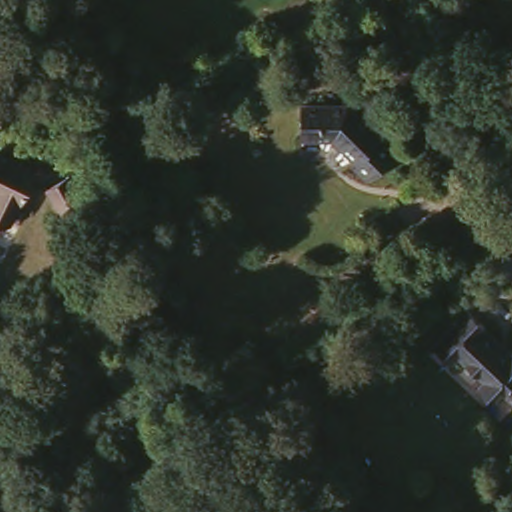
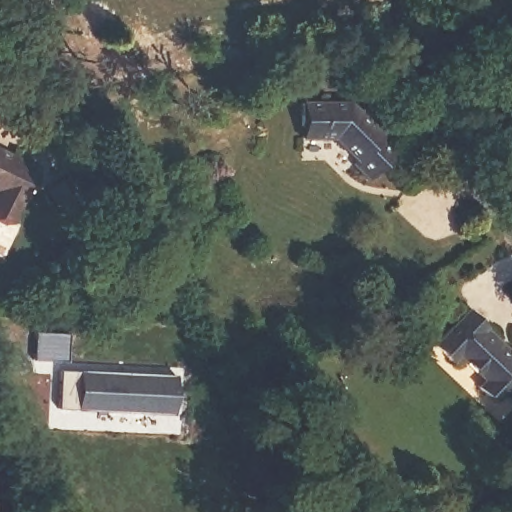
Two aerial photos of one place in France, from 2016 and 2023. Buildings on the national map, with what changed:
unchanged [(346,100),(380,134),(376,138),(390,153),(366,177),(350,161),(354,157),(332,135),(300,135),(299,100),(346,100)]
unchanged [(14,214),(0,207),(0,143),(39,161),(14,214)]
unchanged [(68,166),(87,200),(63,214),(44,180),(68,166)]
unchanged [(512,350),(512,398),(504,391),(494,402),(475,385),(483,377),(456,352),(450,360),(431,342),(466,306),(484,324),(510,348),(512,350)]
new [(70,337),(69,363),(33,362),(32,335),(70,337)]
new [(176,378),(175,416),(57,412),(59,373),(176,378)]

